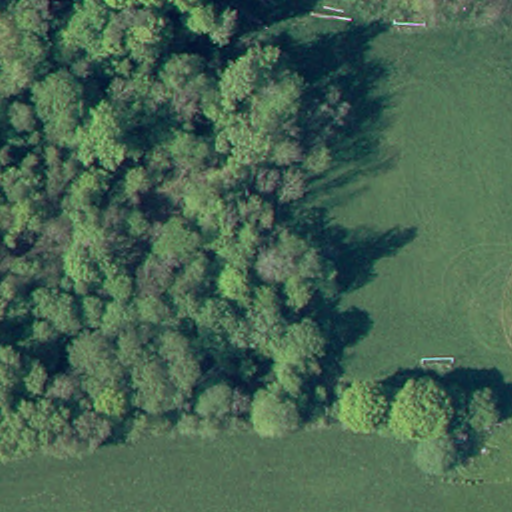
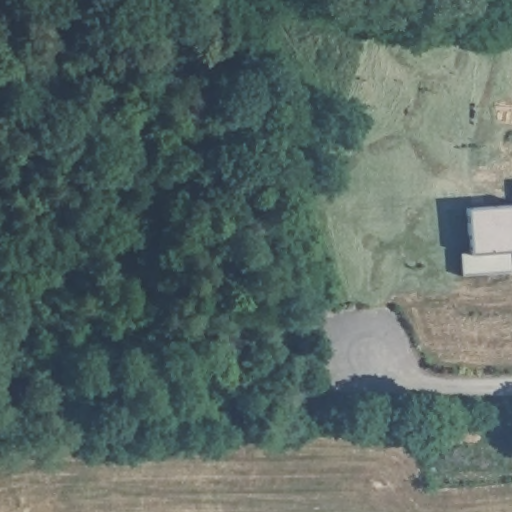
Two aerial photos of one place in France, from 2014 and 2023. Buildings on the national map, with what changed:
new [(511,251),(512,271),(461,276),(459,254),(470,252),(467,207),(512,203),(512,251),(511,251)]

